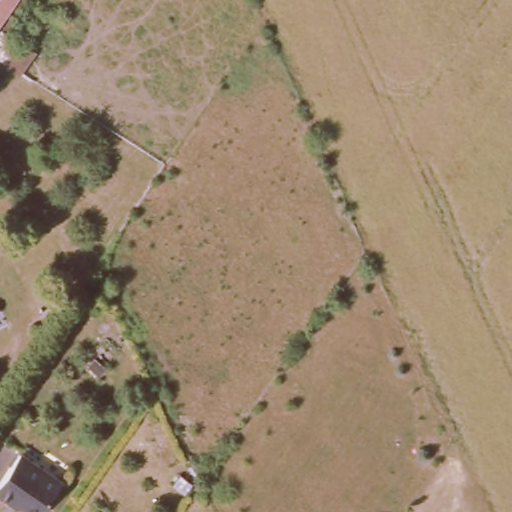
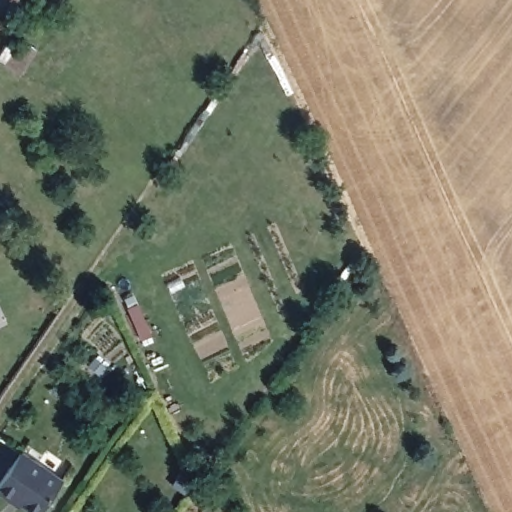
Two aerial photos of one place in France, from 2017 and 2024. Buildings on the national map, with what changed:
unchanged [(0,0),(14,0),(0,19),(0,0)]
unchanged [(0,60),(0,55),(11,38),(19,44),(24,40),(37,50),(21,74),(0,60)]
unchanged [(35,512),(32,512),(0,492),(0,484),(19,455),(56,476),(35,512)]

